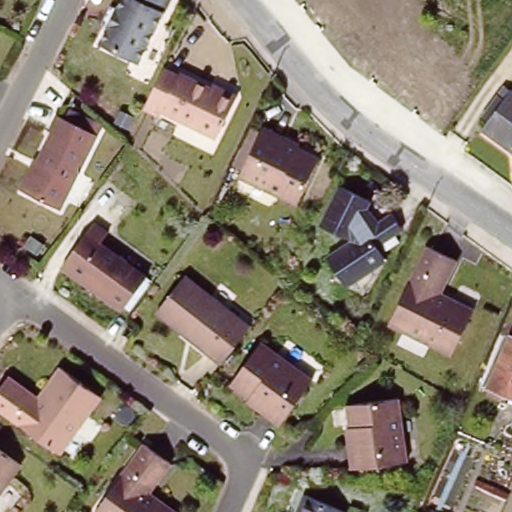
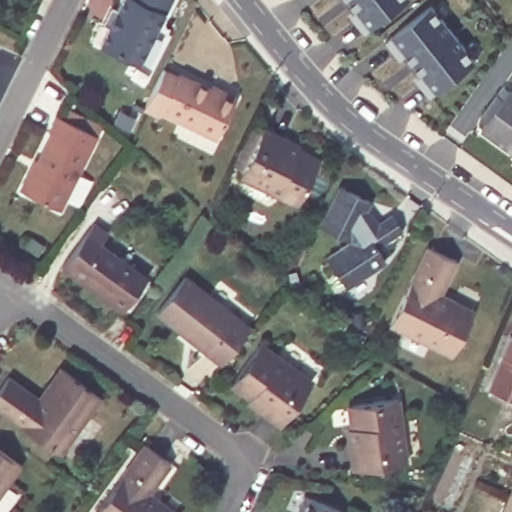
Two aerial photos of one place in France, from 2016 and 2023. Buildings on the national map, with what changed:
unchanged [(106,45),(128,0),(174,0),(144,62),(106,45)]
new [(343,0),(348,0),(345,2),(343,0)]
new [(348,0),(405,0),(360,36),(349,23),(345,18),(352,12),(345,2),(348,0)]
new [(389,60),(378,47),(425,10),(447,38),(408,69),(400,59),(393,65),(389,60)]
new [(408,69),(447,38),(468,66),(423,102),(412,89),(408,85),(415,79),(408,69)]
unchanged [(184,69),(216,85),(217,82),(239,92),(237,96),(220,131),(167,105),(165,110),(149,102),(167,65),(182,72),(184,69)]
unchanged [(497,122),(490,118),(503,97),(511,102),(512,101),(512,146),(490,132),(497,122)]
unchanged [(60,210),(18,189),(55,117),(102,136),(60,210)]
unchanged [(295,205),(239,175),(262,129),(283,139),(285,135),(299,142),(320,154),(295,205)]
unchanged [(347,285),(330,257),(355,242),(325,226),(343,190),(372,204),(372,207),(382,226),(395,217),(405,232),(381,247),(389,260),(347,285)]
unchanged [(62,262),(93,217),(107,227),(98,239),(147,273),(123,307),(62,262)]
unchanged [(390,326),(428,247),(457,262),(440,294),(475,312),(453,357),(390,326)]
unchanged [(162,307),(189,272),(255,322),(227,357),(162,307)]
unchanged [(250,397),(234,386),(262,346),(310,381),(280,423),(260,408),(248,400),(250,397)]
unchanged [(512,350),(512,401),(492,392),(512,350)]
unchanged [(0,411),(0,388),(6,380),(35,401),(60,368),(102,398),(60,455),(0,411)]
unchanged [(355,431),(349,410),(399,398),(414,458),(362,472),(355,446),(351,432),(355,431)]
unchanged [(95,510),(147,441),(170,458),(148,487),(181,512),(98,512),(95,510)]
unchanged [(0,492),(0,450),(20,465),(0,492)]
unchanged [(306,495),(344,512),(298,512),(306,495)]

